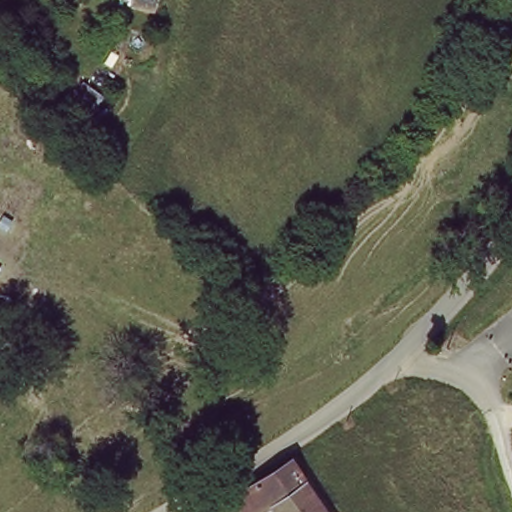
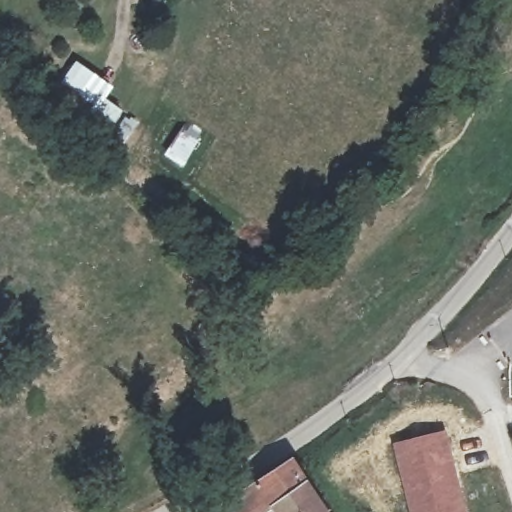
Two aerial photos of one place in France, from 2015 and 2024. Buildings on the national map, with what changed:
unchanged [(99,108),(87,126),(51,99),(64,82),(99,108)]
new [(467,512),(408,512),(391,443),(446,429),(467,512)]
unchanged [(263,476),(291,459),(327,512),(283,512),(276,499),(263,476)]
unchanged [(254,512),(221,512),(213,505),(263,476),(276,499),(254,512)]

